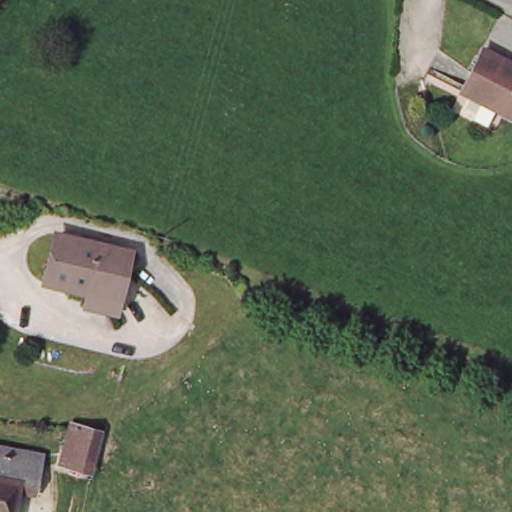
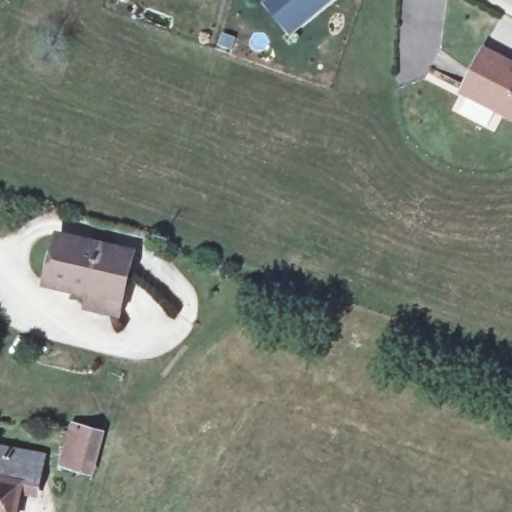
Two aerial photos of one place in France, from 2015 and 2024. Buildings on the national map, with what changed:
new [(264,0),(332,0),(290,35),(262,1),(264,0)]
unchanged [(482,50),(512,66),(512,119),(460,92),(482,50)]
unchanged [(44,279),(62,231),(132,255),(107,318),(79,308),(85,293),(44,279)]
unchanged [(65,469),(72,445),(56,440),(62,422),(85,428),(102,433),(97,452),(90,477),(65,469)]
unchanged [(34,495),(15,490),(9,512),(0,512),(0,446),(45,458),(34,495)]

